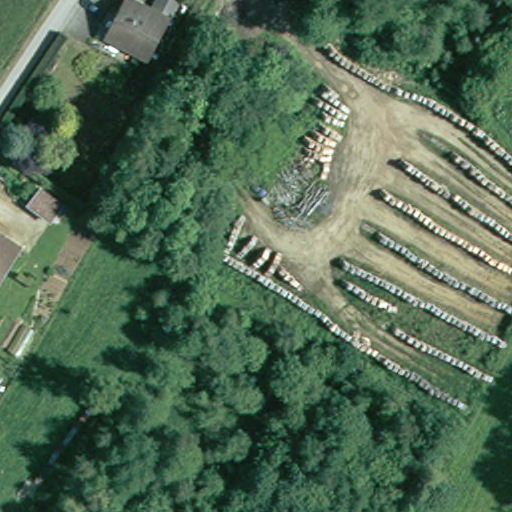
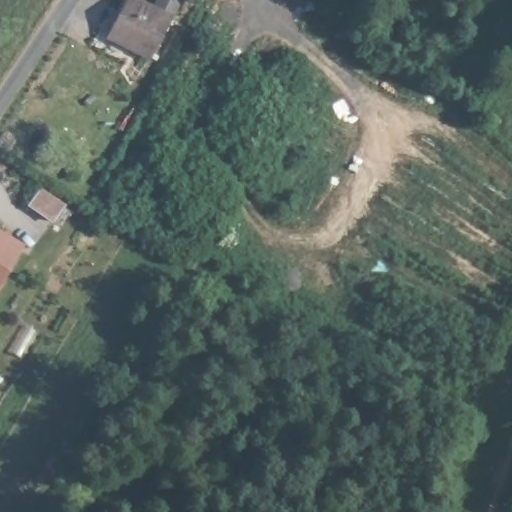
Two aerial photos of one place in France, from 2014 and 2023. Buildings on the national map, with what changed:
unchanged [(166,22),(148,63),(104,46),(123,5),(166,22)]
unchanged [(0,272),(0,240),(12,246),(0,272)]

